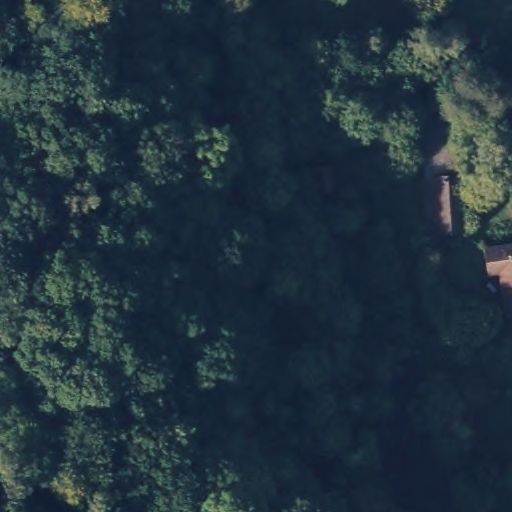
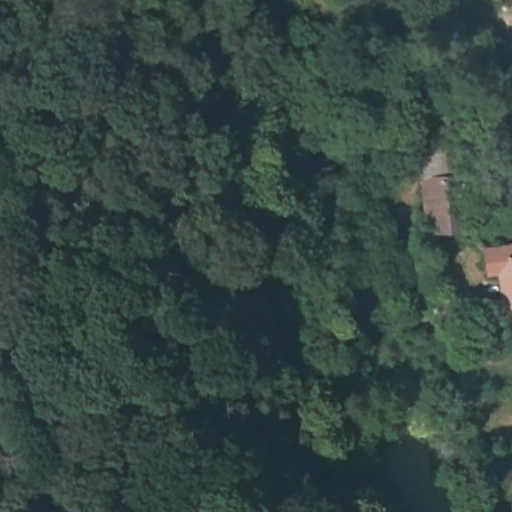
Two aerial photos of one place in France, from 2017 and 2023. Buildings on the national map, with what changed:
unchanged [(436,173),(433,121),(457,119),(461,171),(436,173)]
unchanged [(335,187),(315,190),(312,170),(332,166),(335,187)]
unchanged [(466,171),(468,223),(435,225),(431,173),(436,173),(461,171),(466,171)]
unchanged [(511,268),(490,272),(486,250),(512,246),(512,272),(511,268)]
unchanged [(507,312),(504,287),(512,287),(512,311),(507,312)]
unchanged [(440,343),(452,348),(450,357),(436,352),(440,343)]

